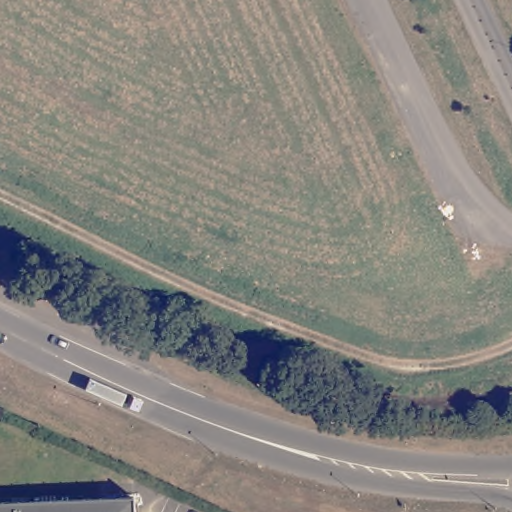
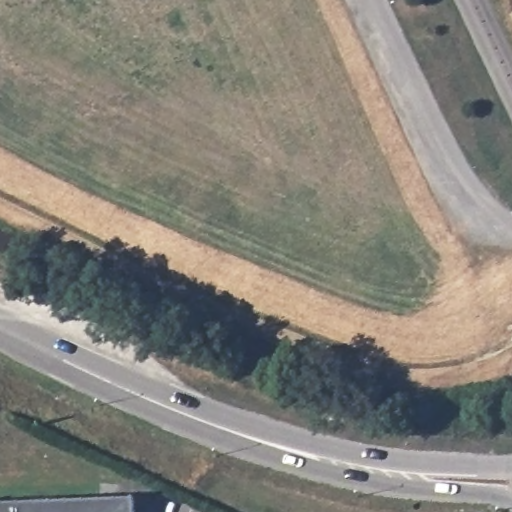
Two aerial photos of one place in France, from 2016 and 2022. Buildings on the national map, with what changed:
unchanged [(139,512),(0,512),(0,507),(138,500),(139,512)]

